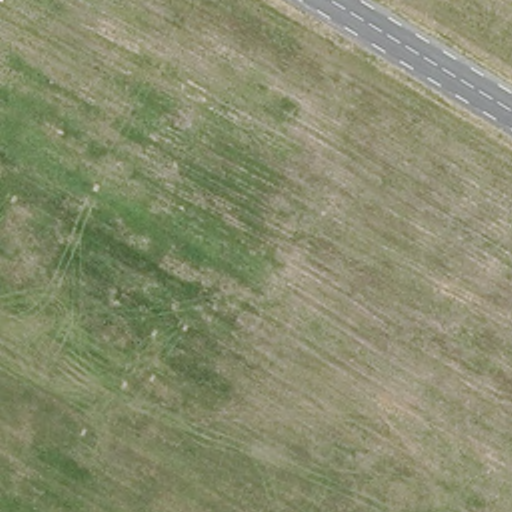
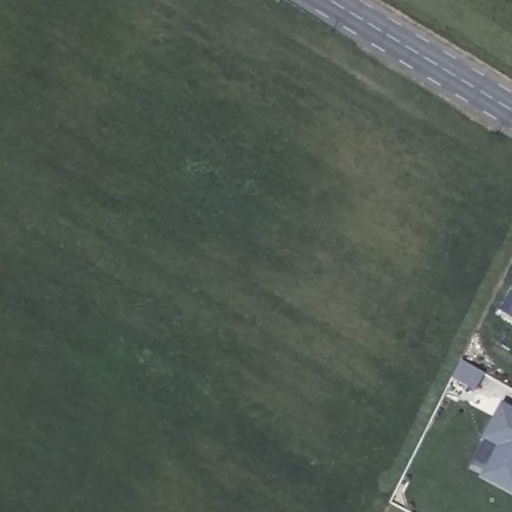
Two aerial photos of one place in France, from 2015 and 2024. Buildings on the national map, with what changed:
new [(482,440),(501,405),(512,411),(512,495),(481,478),(498,448),(482,440)]

